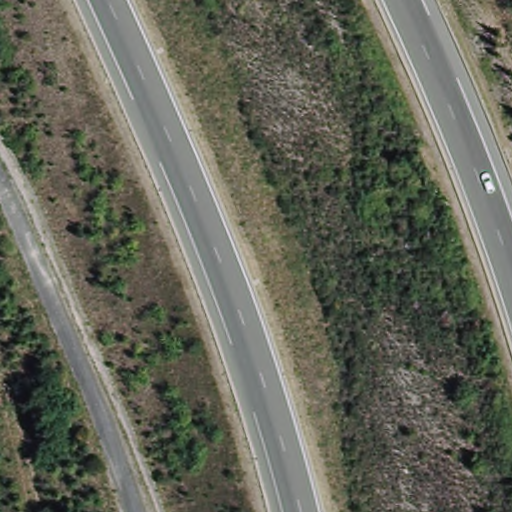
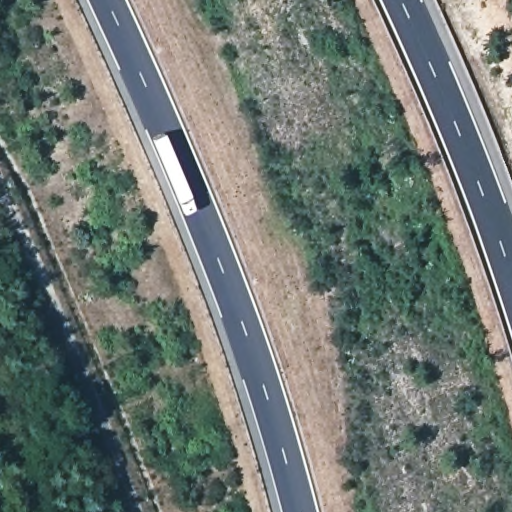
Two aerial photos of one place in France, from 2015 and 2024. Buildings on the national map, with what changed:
[]

